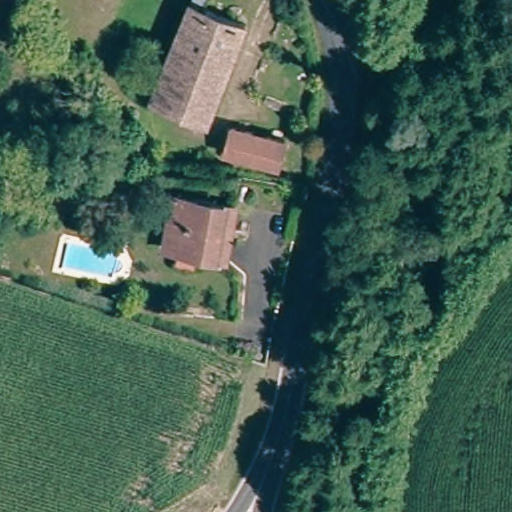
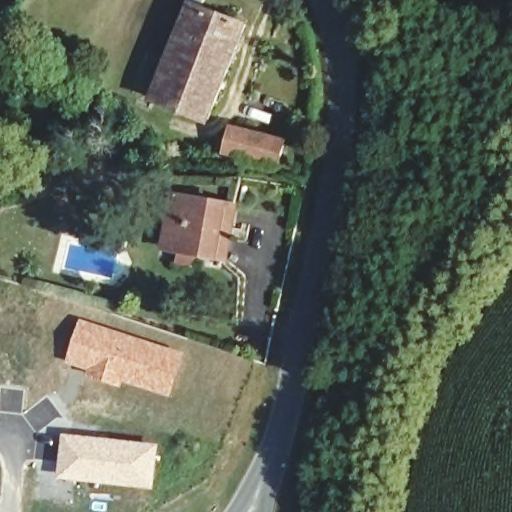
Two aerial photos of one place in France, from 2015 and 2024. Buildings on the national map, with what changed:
unchanged [(155,56),(172,62),(192,8),(246,29),(246,28),(213,117),(158,99),(141,94),(143,85),(155,56)]
unchanged [(288,150),(276,173),(228,154),(238,127),(288,150)]
unchanged [(163,240),(169,196),(235,209),(230,230),(226,245),(222,262),(220,262),(195,258),(161,252),(163,240)]
new [(79,318),(185,352),(170,397),(123,382),(121,387),(86,374),(86,371),(64,362),(79,318)]
new [(61,433),(160,444),(154,490),(56,477),(61,433)]

